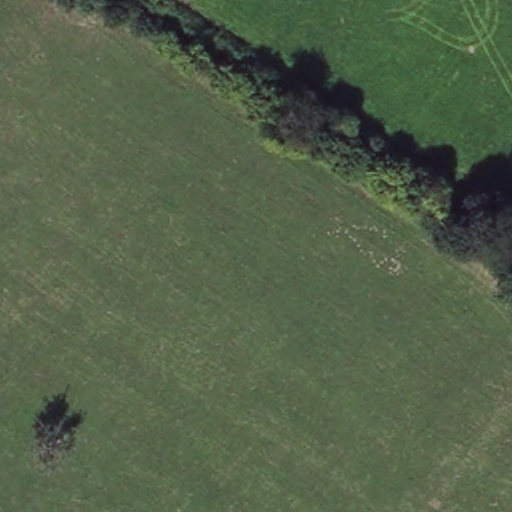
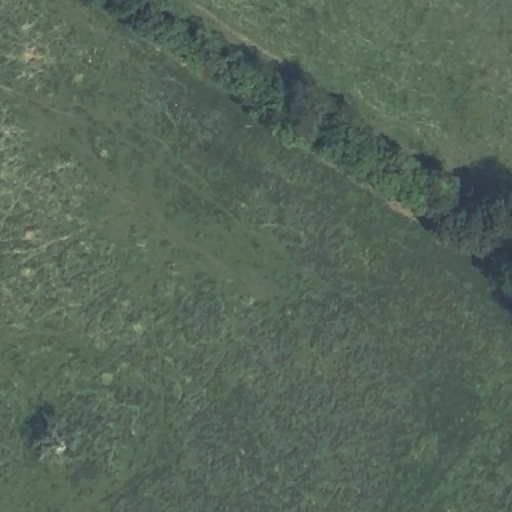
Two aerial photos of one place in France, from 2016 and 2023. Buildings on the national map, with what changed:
[]

